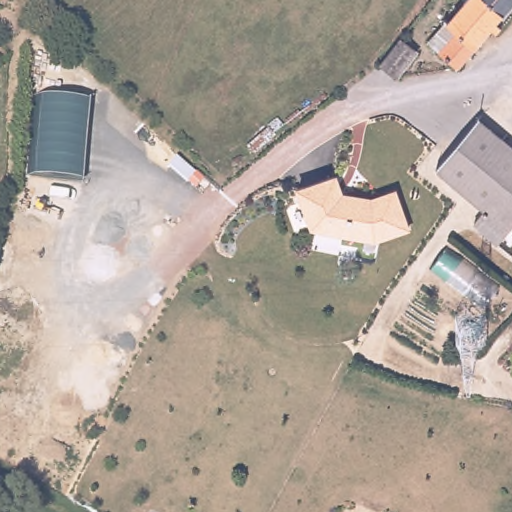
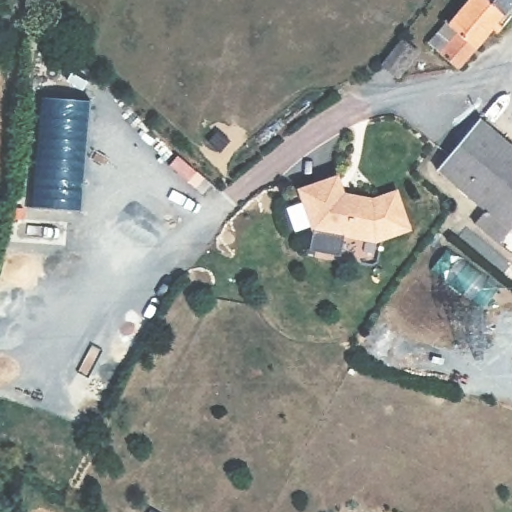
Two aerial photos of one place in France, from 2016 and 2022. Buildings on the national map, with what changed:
unchanged [(466,0),(497,0),(507,9),(512,12),(512,13),(500,27),(496,23),(462,61),(435,38),(466,0)]
unchanged [(497,0),(512,0),(512,4),(507,9),(497,0)]
unchanged [(404,42),(415,56),(392,74),(378,62),(404,42)]
unchanged [(83,182),(35,177),(42,95),(90,99),(83,182)]
unchanged [(512,225),(442,165),(485,114),(489,118),(512,137),(512,225)]
unchanged [(337,174),(343,192),(371,198),(396,190),(410,230),(375,242),(310,230),(297,188),(337,174)]

